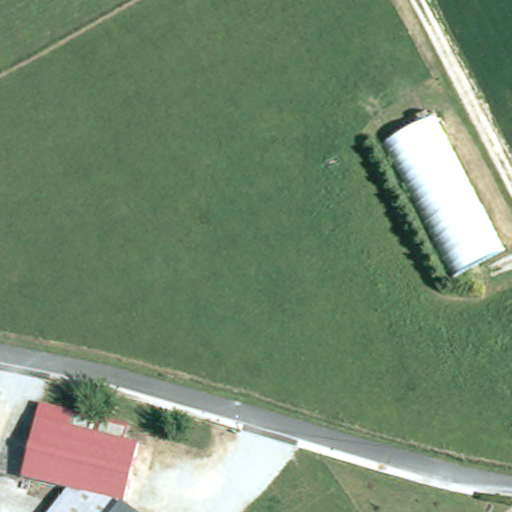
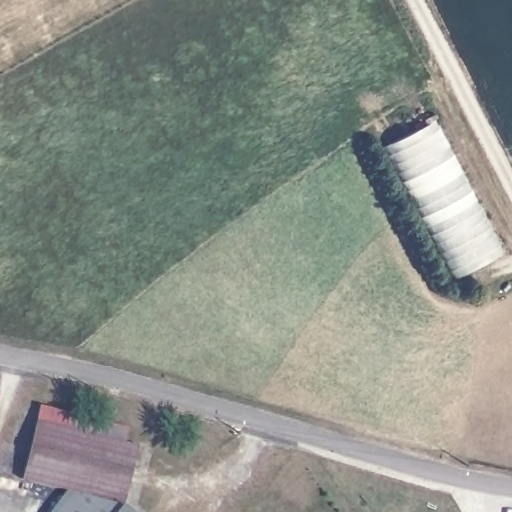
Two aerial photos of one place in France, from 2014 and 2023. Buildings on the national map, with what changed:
unchanged [(396,147),(444,120),(511,259),(462,280),(396,147)]
unchanged [(48,410),(135,431),(131,447),(44,426),(48,410)]
unchanged [(131,508),(77,495),(31,484),(44,426),(131,447),(145,450),(131,508)]
unchanged [(77,495),(131,508),(130,512),(63,512),(77,495)]

